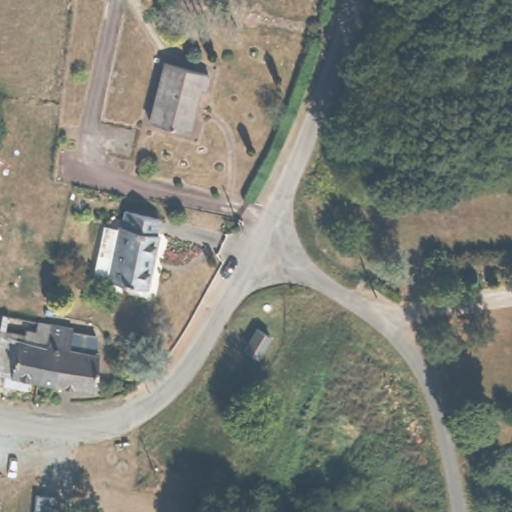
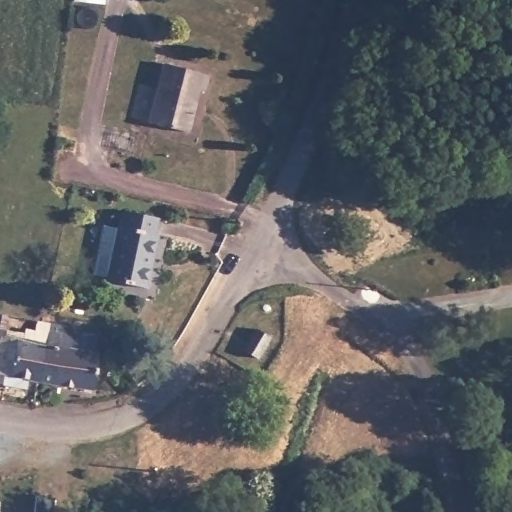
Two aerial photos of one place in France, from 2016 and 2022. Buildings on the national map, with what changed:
unchanged [(207,96),(199,95),(188,135),(149,125),(164,66),(211,79),(207,96)]
unchanged [(103,227),(118,229),(124,230),(129,211),(158,217),(157,235),(161,236),(152,283),(109,276),(110,271),(96,268),(103,227)]
unchanged [(41,377),(31,376),(29,388),(0,384),(0,345),(2,328),(26,334),(29,327),(35,327),(37,319),(44,321),(50,322),(41,377)]
unchanged [(74,326),(73,330),(97,335),(95,347),(101,350),(95,385),(41,377),(50,322),(74,326)]
unchanged [(264,333),(276,342),(263,363),(250,355),(264,333)]
unchanged [(39,512),(41,502),(68,507),(67,512),(39,512)]

